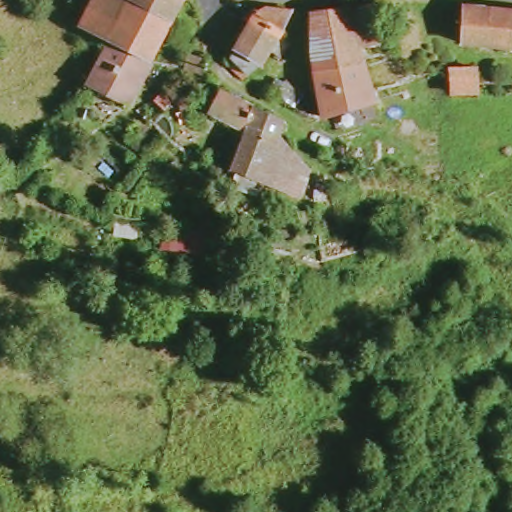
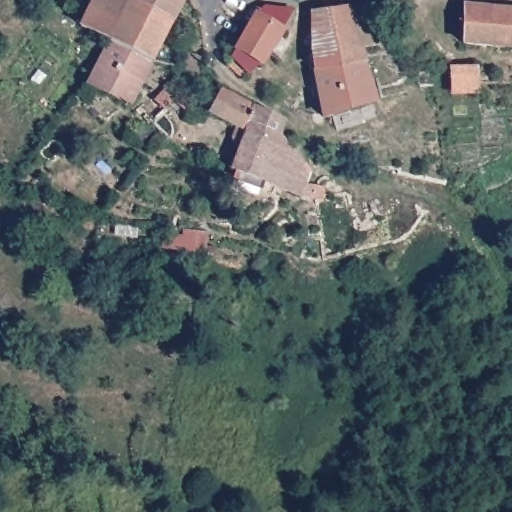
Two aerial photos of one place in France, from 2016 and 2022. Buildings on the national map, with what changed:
unchanged [(89,0),(122,0),(123,1),(104,39),(75,27),(89,0)]
unchanged [(152,59),(104,39),(123,1),(124,0),(179,0),(181,2),(152,59)]
unchanged [(258,61),(249,72),(231,54),(259,2),(289,7),(265,61),(258,61)]
unchanged [(343,5),(344,10),(369,4),(378,42),(356,49),(359,60),(308,72),(304,12),(343,5)]
unchanged [(512,9),(512,48),(464,44),(464,5),(512,9)]
unchanged [(83,85),(104,39),(152,59),(126,108),(83,85)]
unchanged [(185,71),(188,57),(203,61),(199,74),(185,71)]
unchanged [(359,60),(371,101),(318,118),(308,72),(359,60)]
unchanged [(479,66),(482,92),(452,94),(451,66),(479,66)]
unchanged [(273,189),(226,169),(239,126),(206,110),(216,88),(278,120),(273,137),(304,170),(294,198),(273,189)]
unchanged [(161,98),(166,89),(175,100),(168,107),(161,98)]
unchanged [(172,251),(173,238),(184,240),(188,233),(208,235),(206,255),(172,251)]

